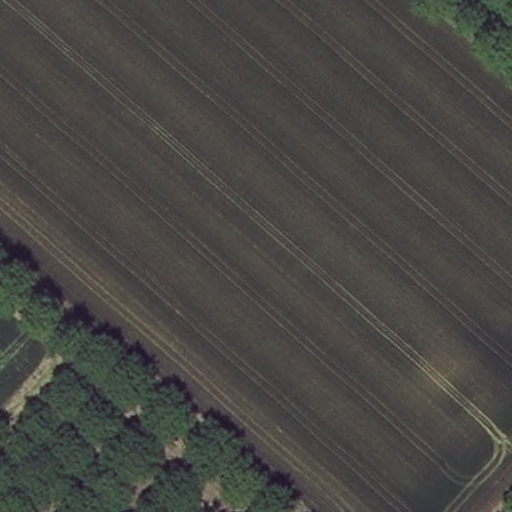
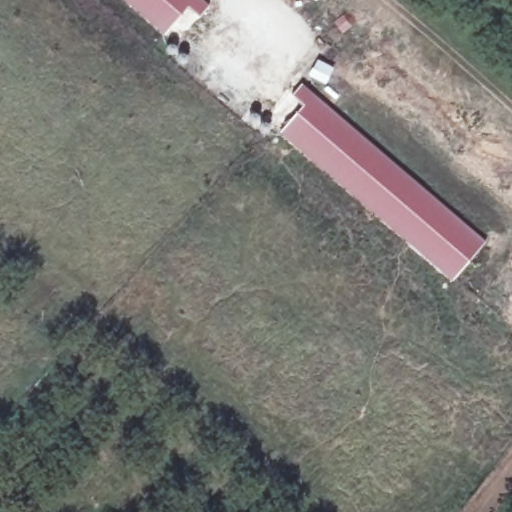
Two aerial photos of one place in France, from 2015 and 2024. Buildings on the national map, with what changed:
new [(188,7),(163,34),(123,0),(204,0),(209,4),(199,17),(188,7)]
new [(485,239),(449,280),(280,132),(304,106),(290,95),(301,83),(485,239)]

